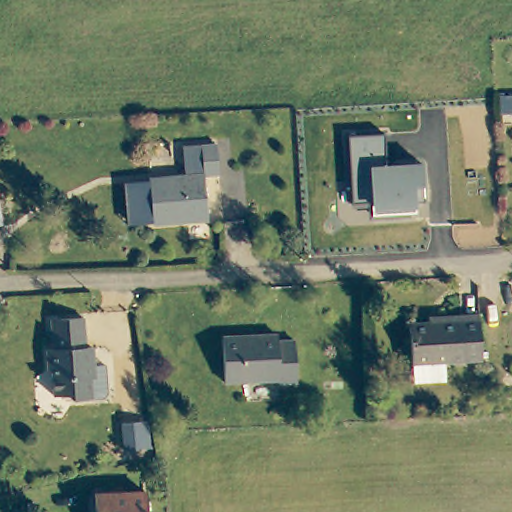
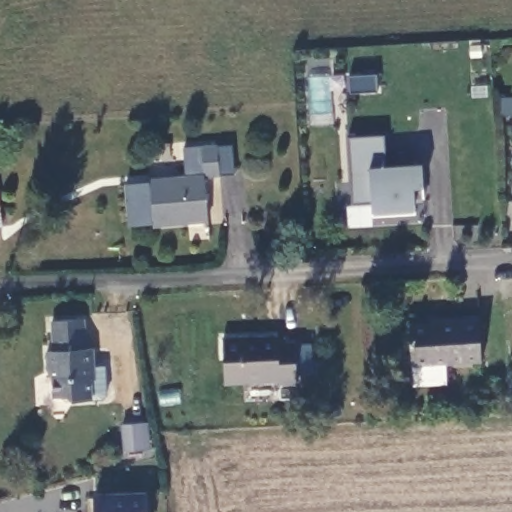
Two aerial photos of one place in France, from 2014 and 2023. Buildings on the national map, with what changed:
unchanged [(349,136),(384,135),(387,165),(421,163),(423,187),(425,202),(414,204),(415,206),(414,214),(372,216),(372,211),(370,202),(352,204),(349,136)]
unchanged [(153,178),(186,176),(185,143),(221,142),(222,176),(204,177),(206,219),(155,220),(153,178)]
unchanged [(2,224),(0,224),(0,189),(1,189),(2,224)]
unchanged [(406,323),(427,322),(426,313),(459,311),(479,310),(481,357),(408,361),(406,323)]
unchanged [(99,392),(85,394),(63,397),(63,395),(50,396),(46,369),(42,370),(40,348),(47,348),(43,321),(76,316),(80,346),(85,345),(87,363),(95,362),(99,392)]
unchanged [(278,333),(278,340),(294,340),(296,381),(277,382),(277,378),(223,380),(221,336),(278,333)]
unchanged [(147,452),(127,452),(127,425),(147,425),(147,452)]
unchanged [(141,488),(144,512),(94,512),(92,494),(141,488)]

